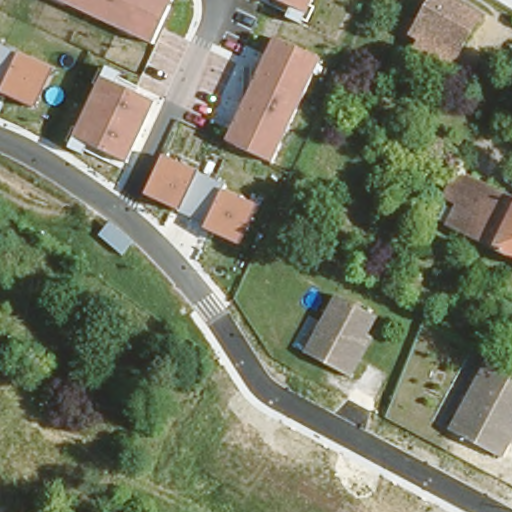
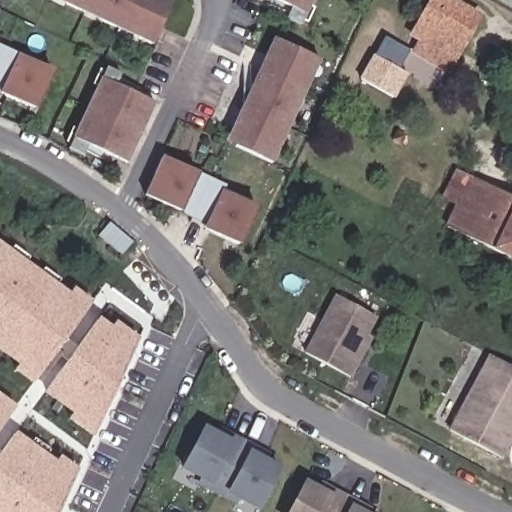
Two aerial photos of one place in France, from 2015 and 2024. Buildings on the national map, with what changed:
unchanged [(152,44),(57,0),(175,0),(152,44)]
unchanged [(311,4),(317,7),(309,24),(305,21),(301,26),(285,17),(290,7),(275,0),(313,0),(311,4)]
unchanged [(424,30),(413,25),(422,10),(428,0),(471,0),(481,6),(451,61),(417,43),(424,30)]
unchanged [(270,164),(226,142),(276,36),(324,59),(270,164)]
unchanged [(32,112),(0,96),(0,44),(53,70),(32,112)]
unchanged [(125,165),(88,147),(82,155),(66,146),(109,65),(122,73),(117,84),(154,103),(125,165)]
unchanged [(238,246),(202,228),(205,223),(144,196),(165,155),(228,186),(224,192),(257,207),(238,246)]
unchanged [(464,170),(512,191),(512,251),(442,220),(464,170)]
new [(13,372),(17,366),(0,354),(0,241),(70,293),(73,288),(92,302),(31,384),(13,372)]
unchanged [(349,376),(302,352),(331,295),(372,316),(362,335),(368,338),(358,357),(349,376)]
new [(67,420),(70,415),(44,393),(99,317),(112,327),(115,322),(138,339),(93,438),(67,420)]
unchanged [(512,447),(505,461),(453,435),(493,357),(501,361),(512,366),(512,447)]
new [(16,406),(0,428),(0,394),(16,406)]
new [(218,433),(221,427),(271,454),(269,460),(281,466),(258,509),(237,499),(234,505),(196,485),(199,478),(180,469),(203,425),(218,433)]
new [(59,455),(78,469),(59,512),(0,512),(0,453),(15,431),(55,461),(59,455)]
new [(318,488),(320,482),(371,507),(368,512),(288,512),(305,481),(318,488)]

